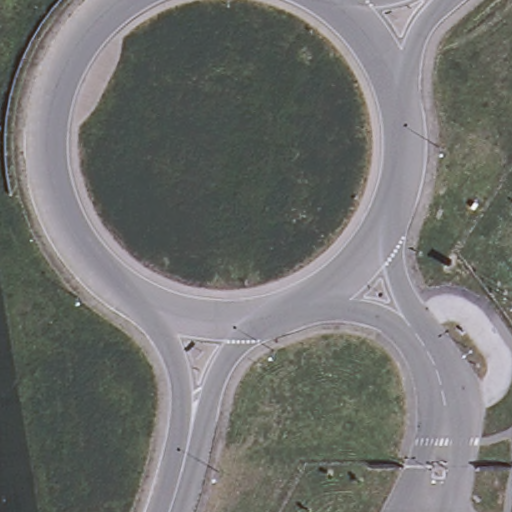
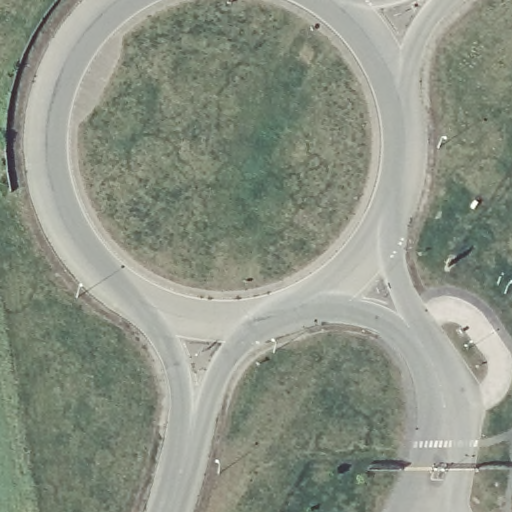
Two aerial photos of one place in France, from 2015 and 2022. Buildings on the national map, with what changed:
[]

